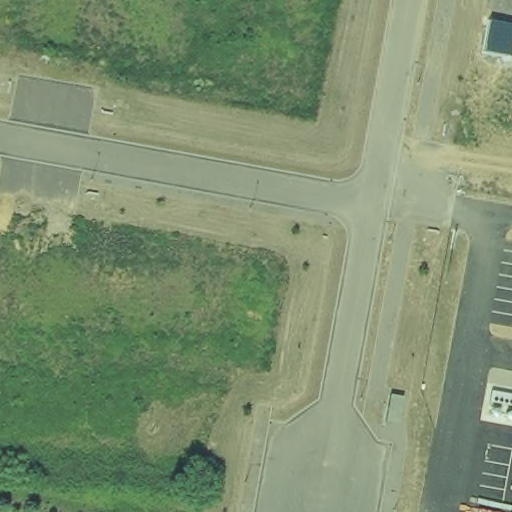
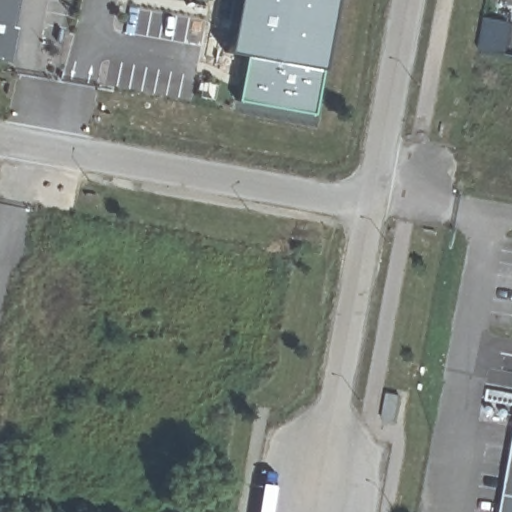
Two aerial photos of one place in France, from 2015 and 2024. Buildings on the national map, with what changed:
new [(11,28),(16,29),(11,61),(0,59),(0,0),(16,0),(11,28)]
new [(332,121),(240,111),(252,0),(343,0),(332,121)]
unchanged [(509,512),(512,494),(512,512),(509,512)]

